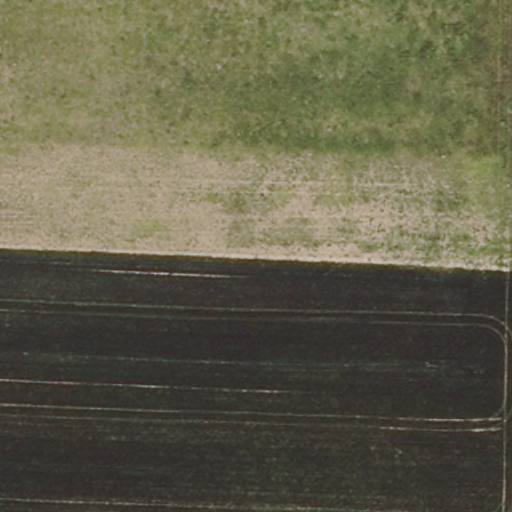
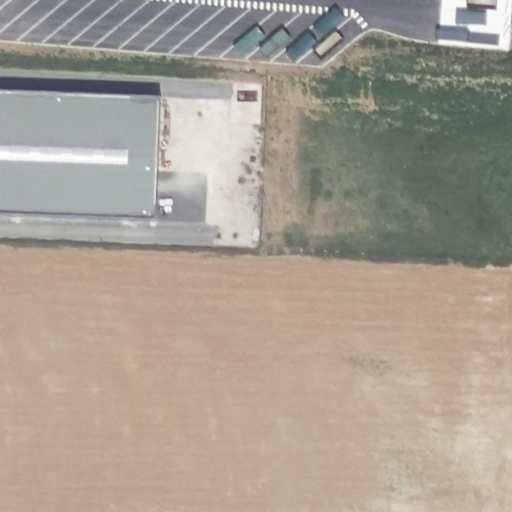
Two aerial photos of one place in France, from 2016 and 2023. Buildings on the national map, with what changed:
new [(158,220),(0,214),(0,92),(162,98),(158,220)]

